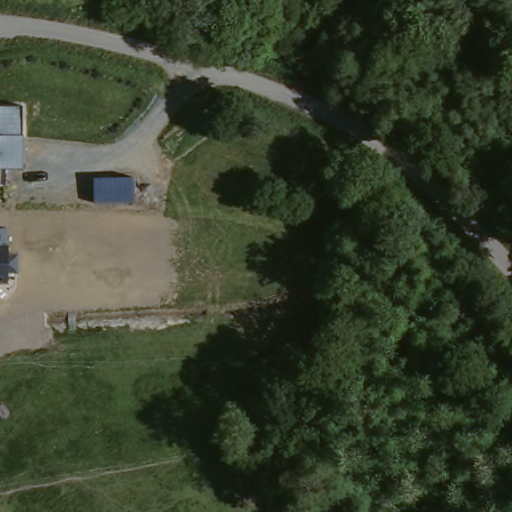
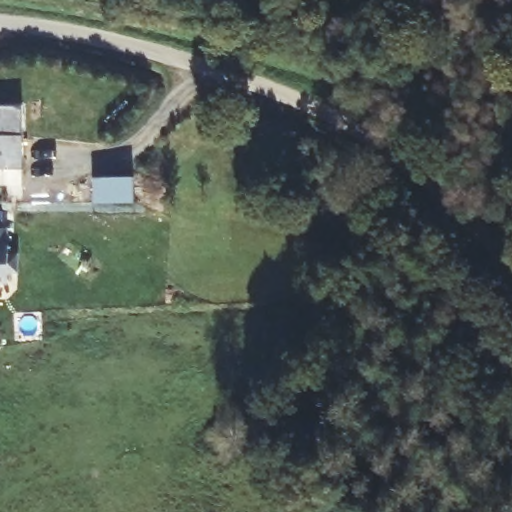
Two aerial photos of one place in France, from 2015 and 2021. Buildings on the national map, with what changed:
unchanged [(23,165),(0,165),(0,105),(22,105),(23,165)]
unchanged [(6,245),(11,245),(11,280),(0,280),(0,225),(7,226),(6,245)]

